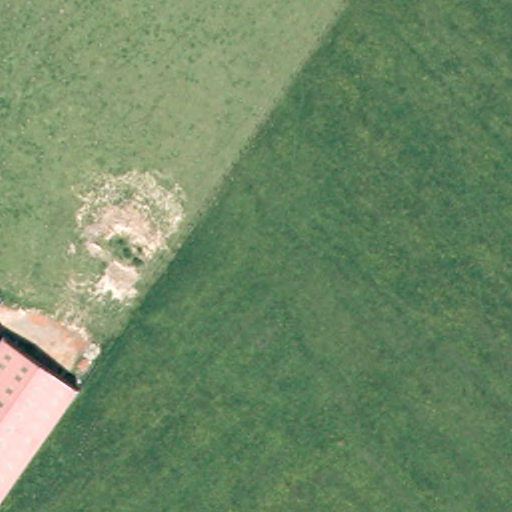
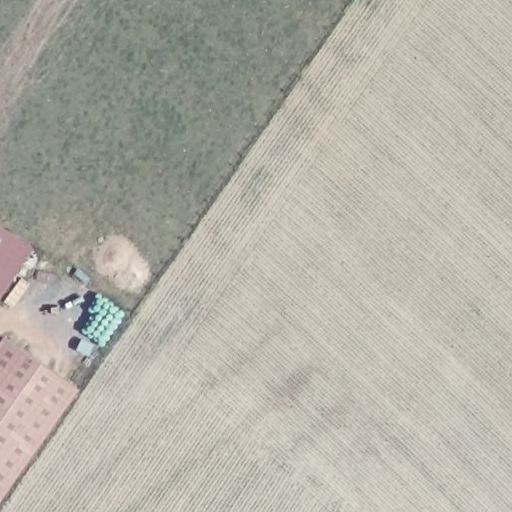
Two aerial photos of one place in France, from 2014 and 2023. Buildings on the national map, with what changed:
new [(34,250),(0,301),(0,227),(34,250)]
unchanged [(80,389),(0,506),(0,346),(5,338),(80,389)]

